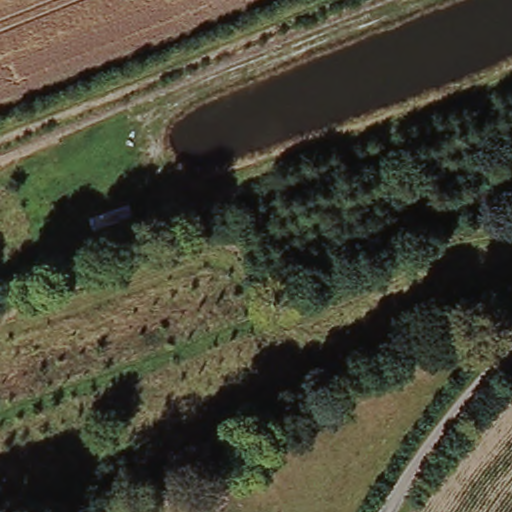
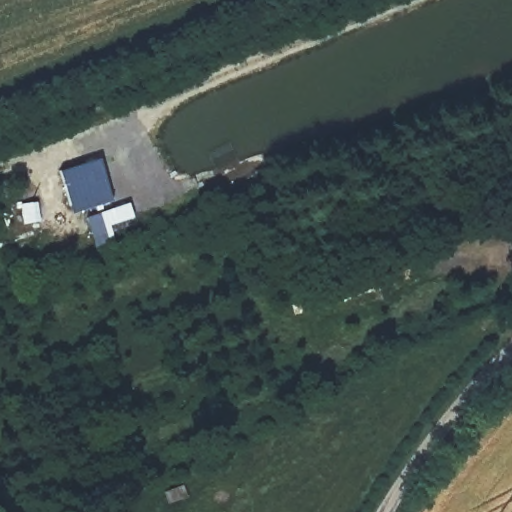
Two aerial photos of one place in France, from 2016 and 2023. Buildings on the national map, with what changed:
new [(101,157),(115,203),(84,212),(71,167),(101,157)]

